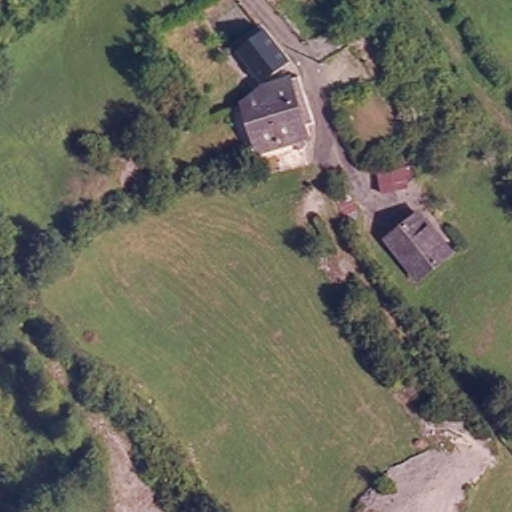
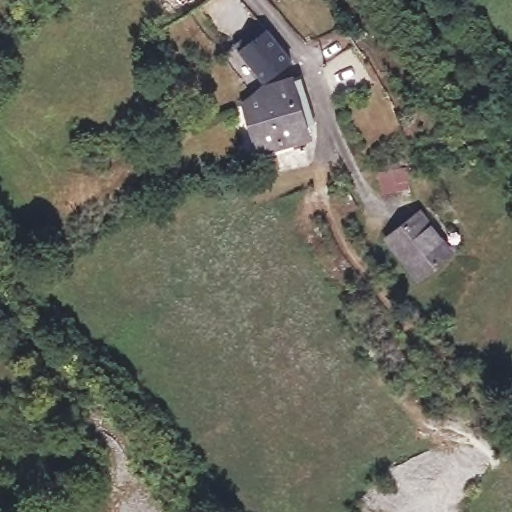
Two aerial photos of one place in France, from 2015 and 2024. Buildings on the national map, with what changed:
unchanged [(262,26),(290,60),(264,80),(235,44),(262,26)]
unchanged [(304,162),(275,171),(249,110),(272,87),(301,73),(320,120),(305,121),(307,135),(315,141),(312,150),(304,162)]
unchanged [(402,195),(378,200),(373,176),(401,173),(402,195)]
unchanged [(453,253),(423,285),(390,244),(423,215),(453,253)]

